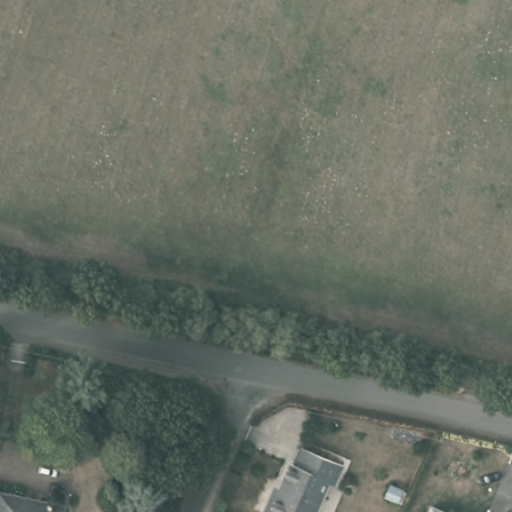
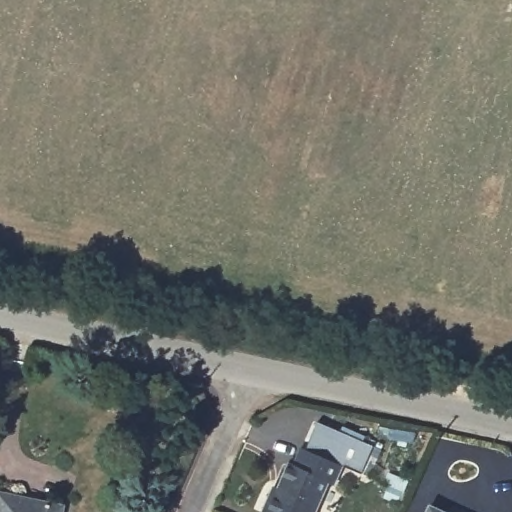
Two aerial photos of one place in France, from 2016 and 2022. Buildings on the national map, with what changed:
new [(372,477),(361,473),(340,465),(341,462),(306,447),(317,422),(385,450),(372,477)]
unchanged [(334,480),(328,477),(313,512),(273,512),(262,508),(271,487),(275,489),(287,463),(291,466),(301,445),(341,462),(334,480)]
unchanged [(0,512),(0,492),(1,487),(68,500),(66,512),(0,512)]
unchanged [(453,512),(430,512),(434,503),(453,512)]

